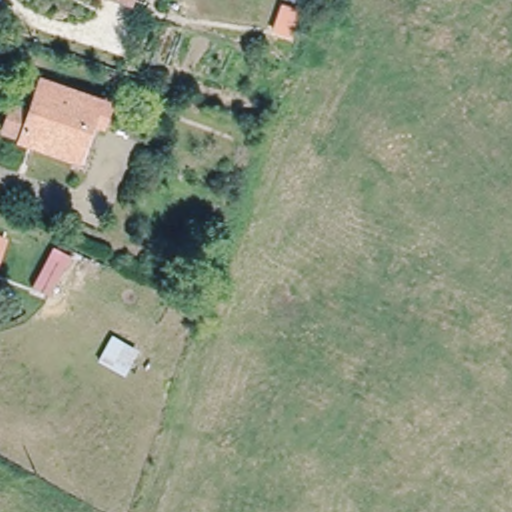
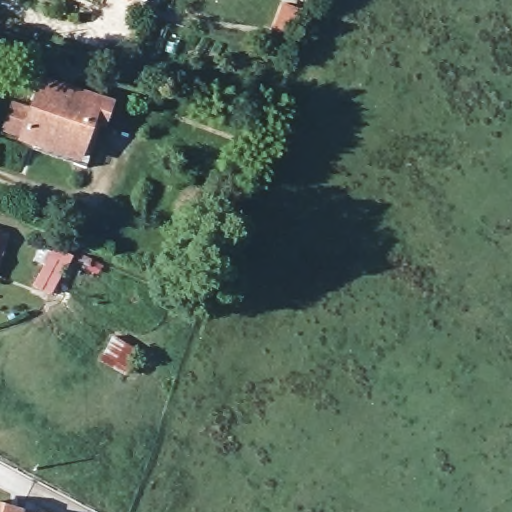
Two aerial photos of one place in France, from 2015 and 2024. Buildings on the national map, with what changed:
unchanged [(112,103),(91,165),(80,161),(82,156),(28,138),(14,133),(24,105),(38,109),(48,80),(112,103)]
unchanged [(76,254),(50,294),(32,285),(57,244),(76,254)]
new [(0,512),(0,505),(28,512),(0,512)]

